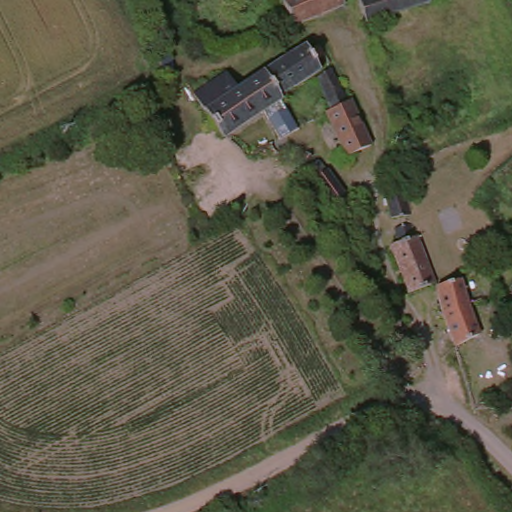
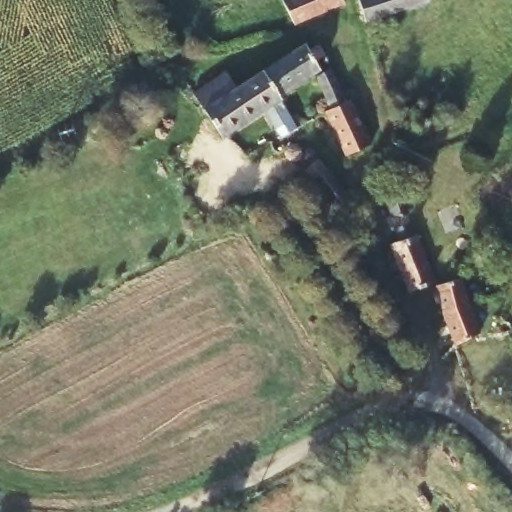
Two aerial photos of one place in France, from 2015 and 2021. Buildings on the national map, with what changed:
unchanged [(287,0),(338,0),(341,8),(291,30),(279,4),(287,0)]
unchanged [(427,6),(362,26),(355,2),(360,0),(425,0),(427,6)]
unchanged [(368,150),(341,161),(321,119),(326,116),(313,80),(275,102),(261,75),(301,50),(304,55),(316,50),(321,62),(313,66),(318,77),(319,78),(327,75),(343,107),(346,104),(368,150)]
unchanged [(275,102),(277,106),(219,143),(189,97),(224,75),(234,91),(261,75),(275,102)]
unchanged [(301,177),(314,164),(324,176),(311,187),(301,177)]
unchanged [(407,218),(388,223),(382,199),(401,194),(407,218)]
unchanged [(406,303),(384,248),(407,241),(425,289),(406,303)]

